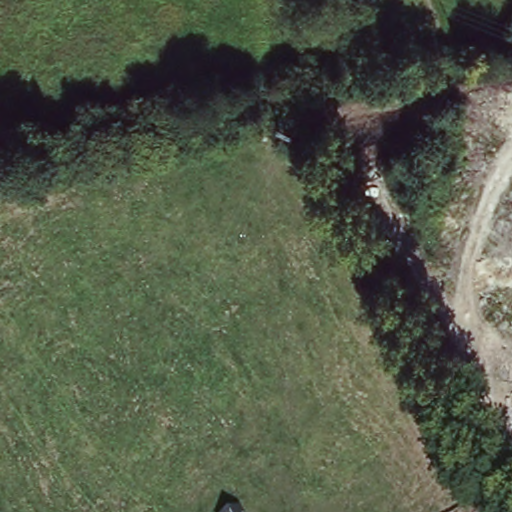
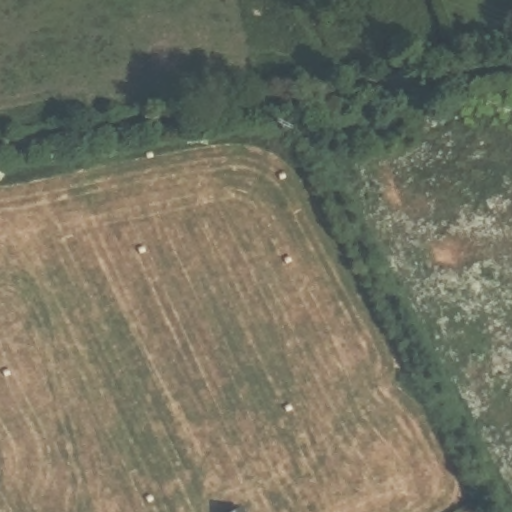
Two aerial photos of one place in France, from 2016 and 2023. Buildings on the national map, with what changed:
unchanged [(235,512),(227,512),(233,509),(235,512)]

